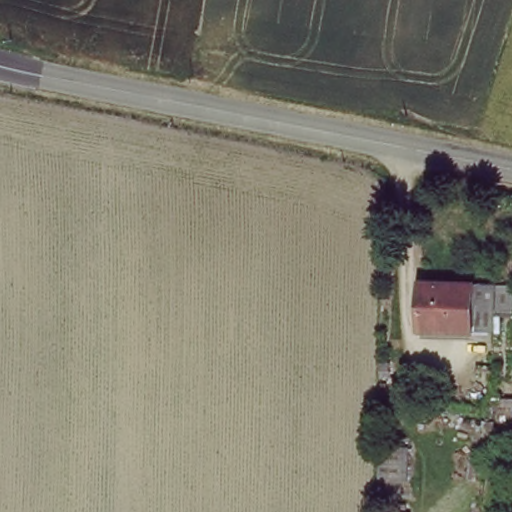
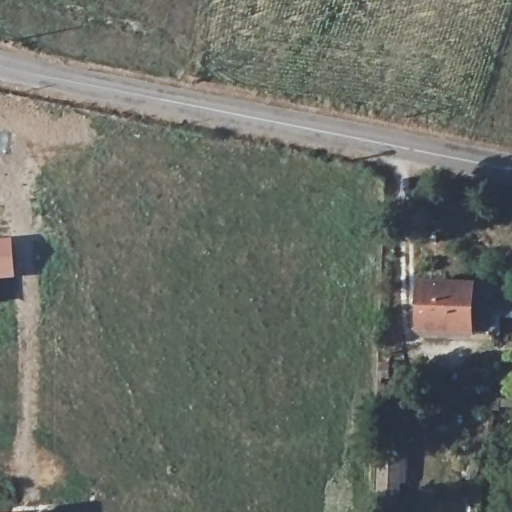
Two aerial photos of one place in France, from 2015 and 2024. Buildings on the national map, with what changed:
new [(12,238),(16,279),(0,280),(0,239),(12,238)]
unchanged [(471,287),(468,334),(421,333),(424,285),(471,287)]

